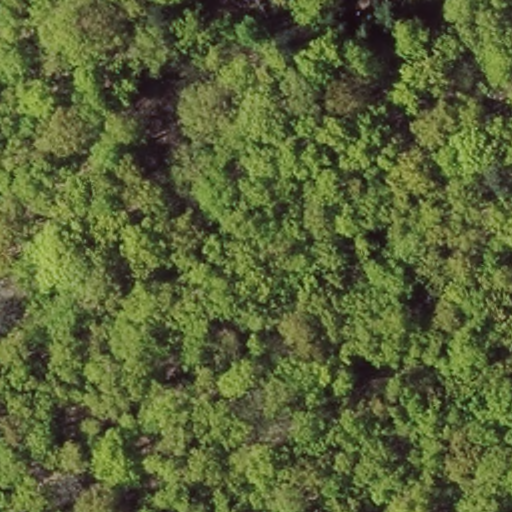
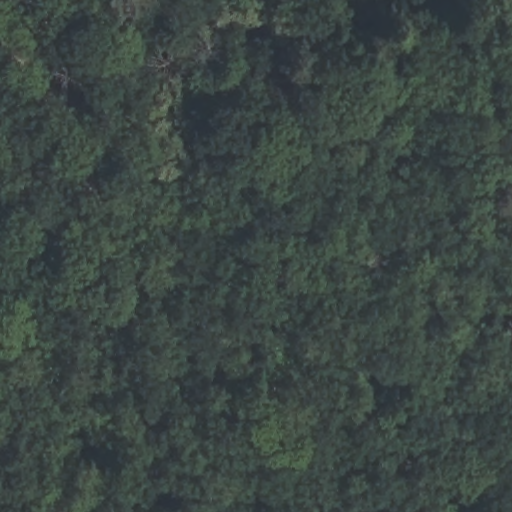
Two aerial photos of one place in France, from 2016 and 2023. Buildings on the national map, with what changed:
unchanged [(376,3),(388,20),(365,37),(353,22),(376,3)]

